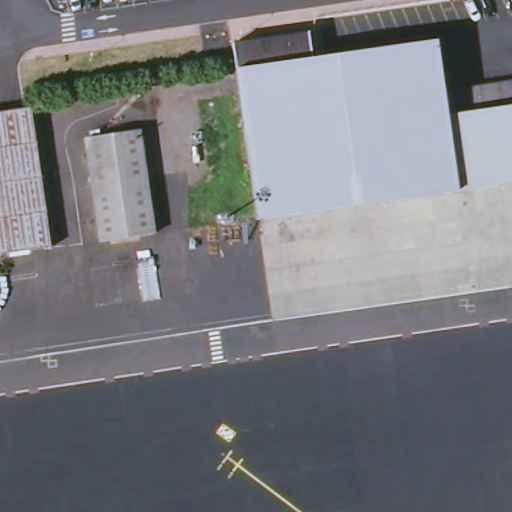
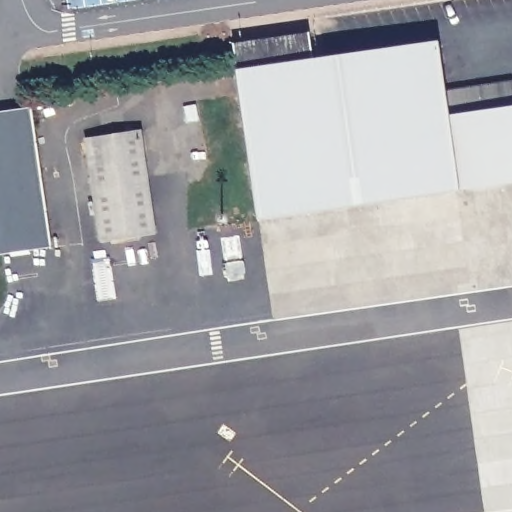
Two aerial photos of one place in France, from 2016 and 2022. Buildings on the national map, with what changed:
unchanged [(232,46),(306,37),(311,61),(435,45),(443,95),(512,85),(512,183),(255,219),(232,46)]
unchanged [(32,109),(55,248),(0,256),(0,114),(32,109)]
unchanged [(87,141),(142,133),(158,233),(103,240),(87,141)]

